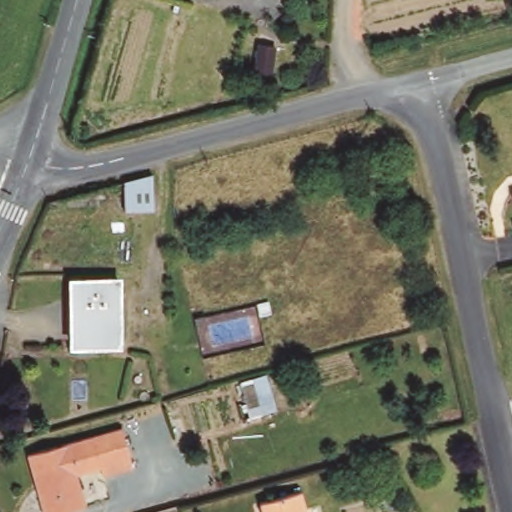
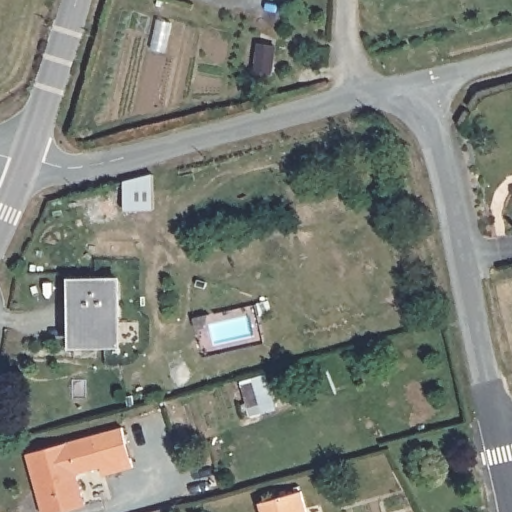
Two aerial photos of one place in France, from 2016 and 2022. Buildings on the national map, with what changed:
unchanged [(143,174),(144,209),(113,210),(112,182),(143,174)]
unchanged [(113,277),(115,344),(67,344),(66,278),(113,277)]
unchanged [(131,469),(101,477),(99,468),(75,475),(83,506),(63,512),(40,512),(24,455),(120,429),(131,469)]
unchanged [(305,512),(262,512),(258,501),(300,491),(305,512)]

